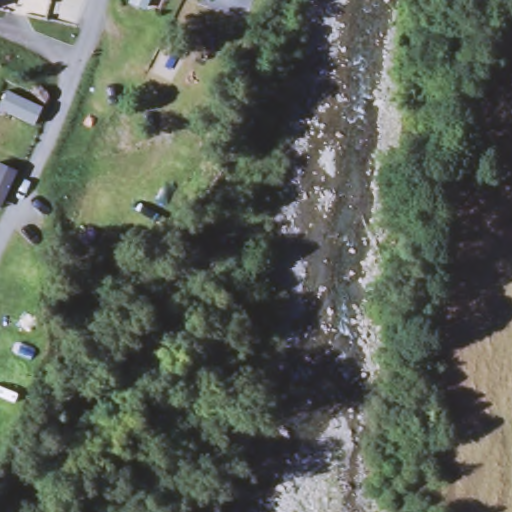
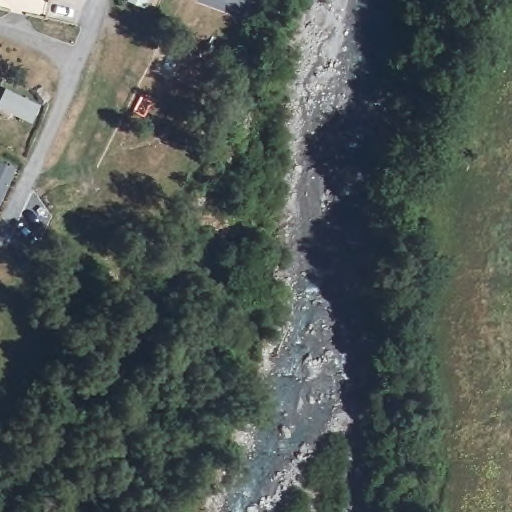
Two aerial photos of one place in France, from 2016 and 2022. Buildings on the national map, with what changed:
unchanged [(124,6),(127,0),(150,0),(143,15),(124,6)]
unchanged [(45,110),(36,129),(0,113),(0,97),(3,91),(45,110)]

